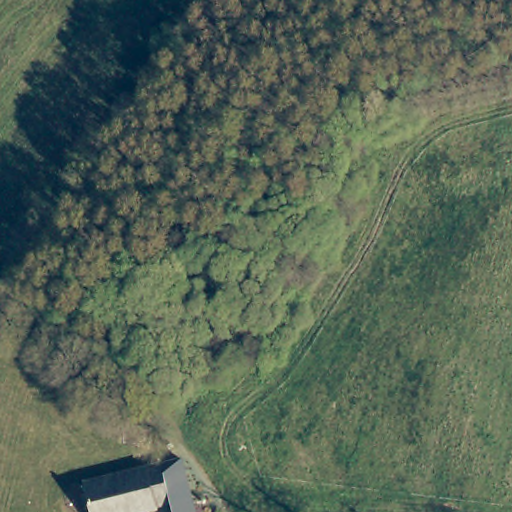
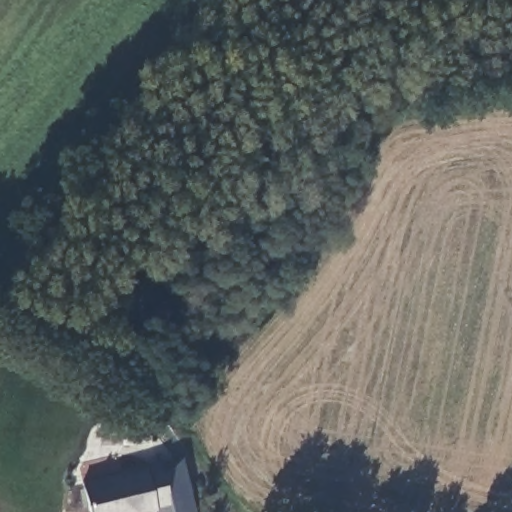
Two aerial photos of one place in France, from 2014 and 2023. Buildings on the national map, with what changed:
unchanged [(167,462),(187,457),(200,512),(179,512),(176,501),(167,462)]
unchanged [(99,512),(90,481),(167,462),(176,501),(162,505),(164,508),(149,512),(99,512)]

